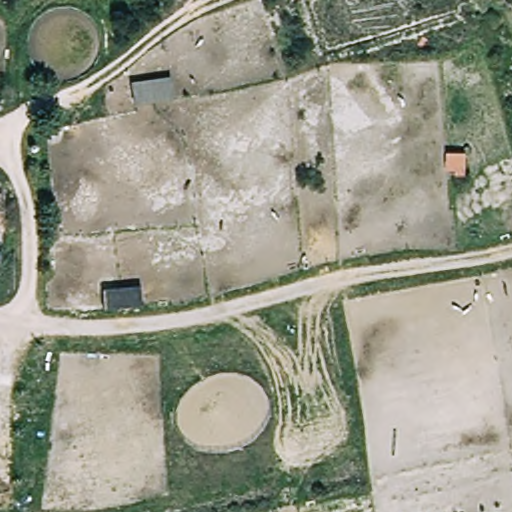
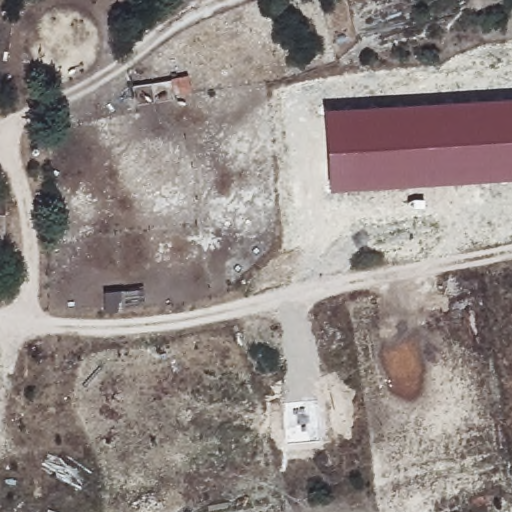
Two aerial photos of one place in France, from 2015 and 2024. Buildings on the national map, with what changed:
new [(328,190),(323,109),(512,96),(512,178),(328,190)]
unchanged [(0,235),(0,196),(5,196),(5,235),(0,235)]

